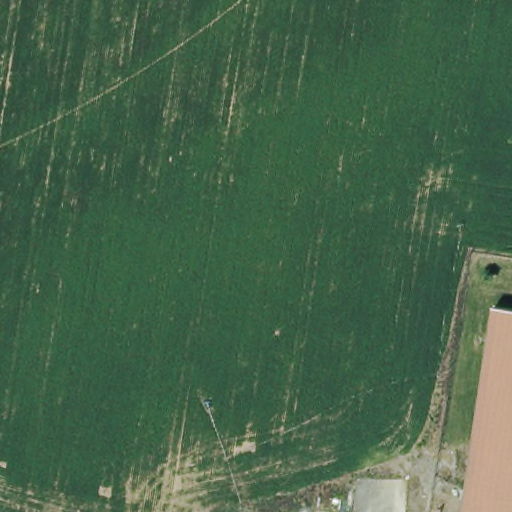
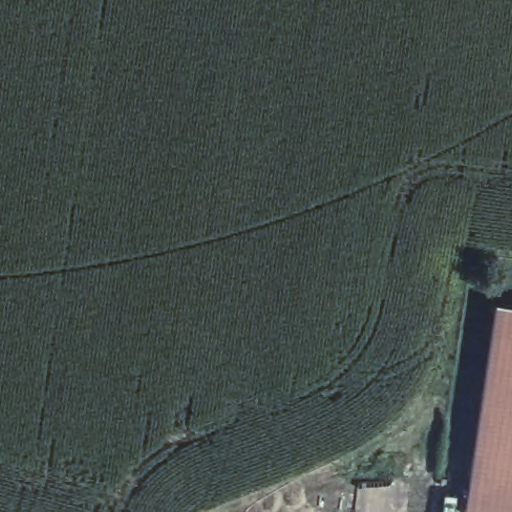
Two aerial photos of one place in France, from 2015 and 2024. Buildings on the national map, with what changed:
unchanged [(512,305),(512,512),(473,512),(463,510),(495,302),(512,305)]

